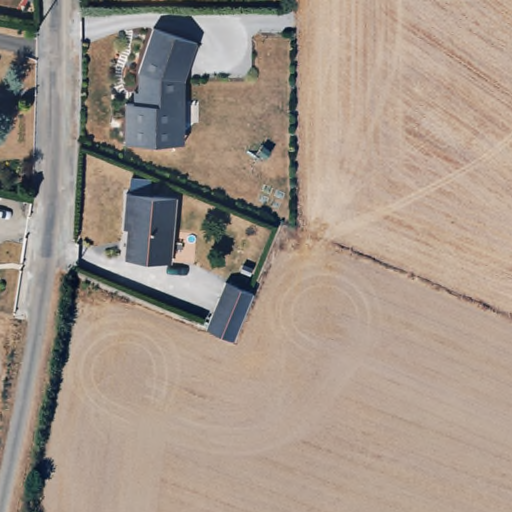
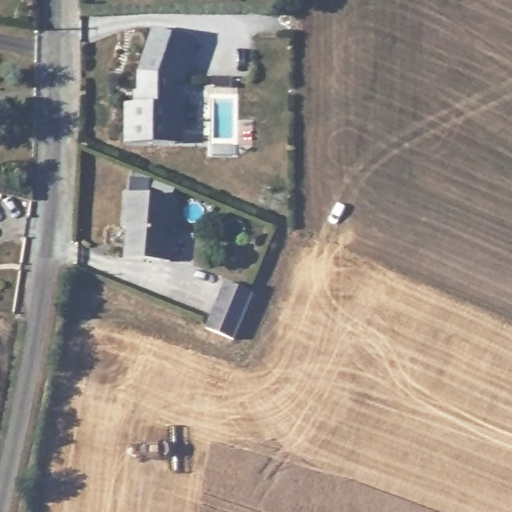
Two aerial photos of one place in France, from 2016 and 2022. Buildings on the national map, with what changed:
unchanged [(182,2),(133,2),(133,0),(182,0),(182,2)]
unchanged [(181,147),(173,147),(122,145),(124,105),(136,106),(137,75),(153,31),(196,46),(186,75),(183,84),(181,147)]
unchanged [(169,204),(163,268),(118,265),(120,235),(116,235),(119,200),(169,204)]
unchanged [(257,293),(237,340),(208,328),(228,282),(257,293)]

